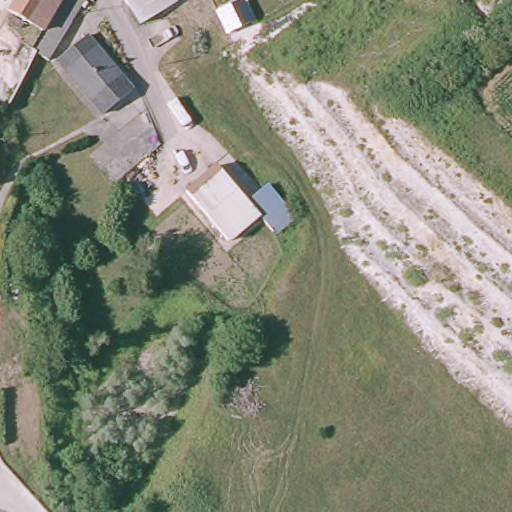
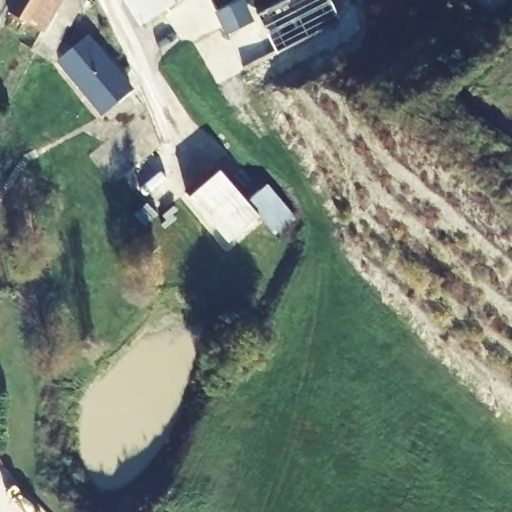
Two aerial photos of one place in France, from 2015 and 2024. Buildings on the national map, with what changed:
unchanged [(45,36),(40,34),(7,14),(16,0),(65,0),(45,36)]
unchanged [(45,36),(65,0),(86,0),(47,62),(30,53),(40,34),(45,36)]
unchanged [(175,7),(142,29),(123,0),(170,0),(175,7)]
new [(259,15),(288,0),(330,0),(340,20),(278,52),(259,15)]
unchanged [(87,39),(129,95),(97,118),(55,61),(87,39)]
demolished [(127,102),(137,116),(112,135),(101,120),(127,102)]
unchanged [(215,164),(222,170),(248,200),(268,181),(297,216),(277,234),(261,216),(232,240),(190,195),(186,189),(215,164)]

